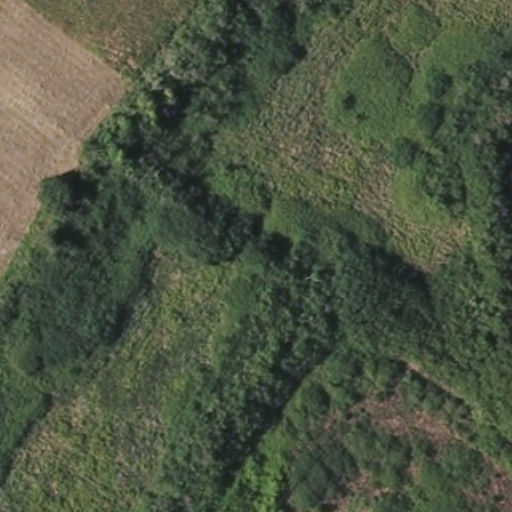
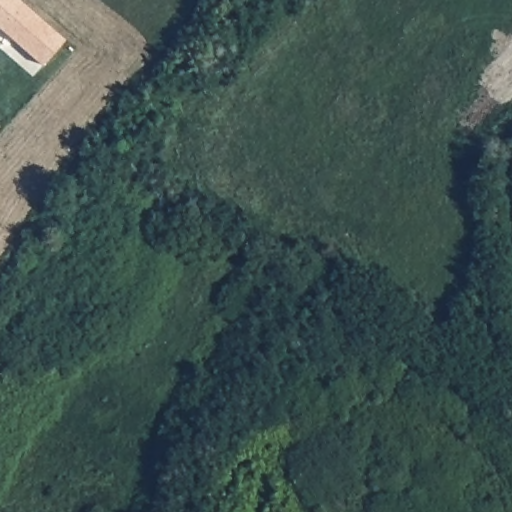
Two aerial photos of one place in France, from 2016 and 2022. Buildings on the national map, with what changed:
new [(41,64),(0,28),(0,0),(19,0),(64,39),(41,64)]

